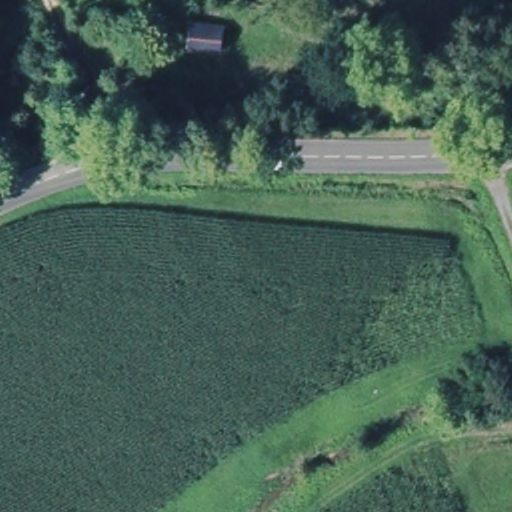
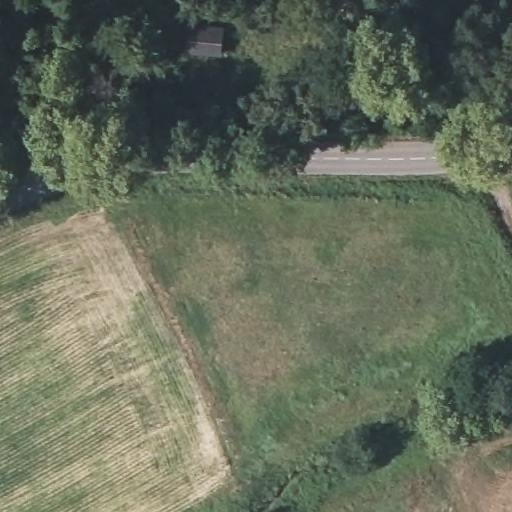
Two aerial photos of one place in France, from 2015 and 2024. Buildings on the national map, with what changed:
unchanged [(191,52),(192,22),(226,29),(225,55),(191,52)]

